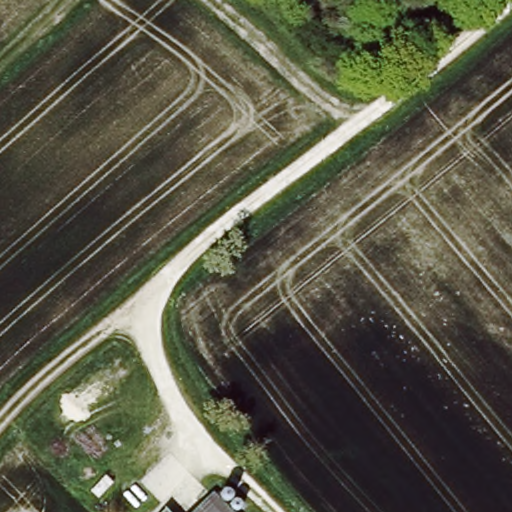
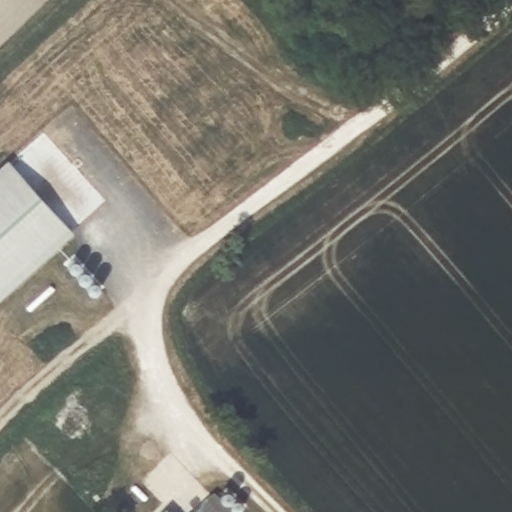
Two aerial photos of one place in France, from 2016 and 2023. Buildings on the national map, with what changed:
new [(0,302),(0,169),(10,160),(77,232),(0,302)]
unchanged [(205,494),(222,512),(186,512),(205,494)]
unchanged [(159,507),(163,512),(154,512),(159,507)]

